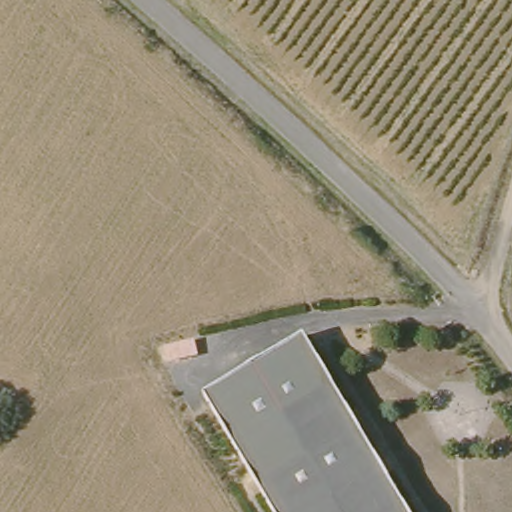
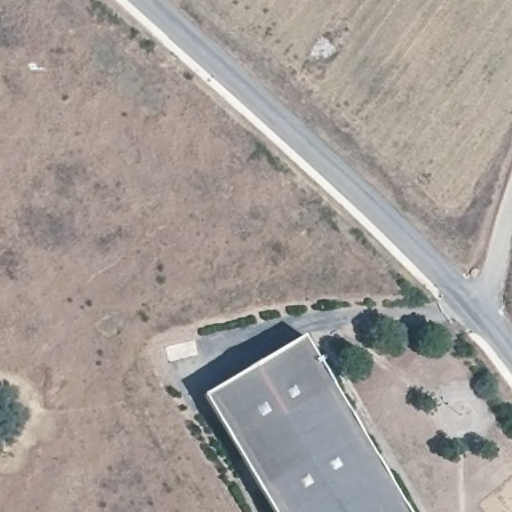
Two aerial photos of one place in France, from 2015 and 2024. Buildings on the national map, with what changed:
unchanged [(269,512),(233,450),(200,394),(301,333),(378,464),(406,512),(269,512)]

